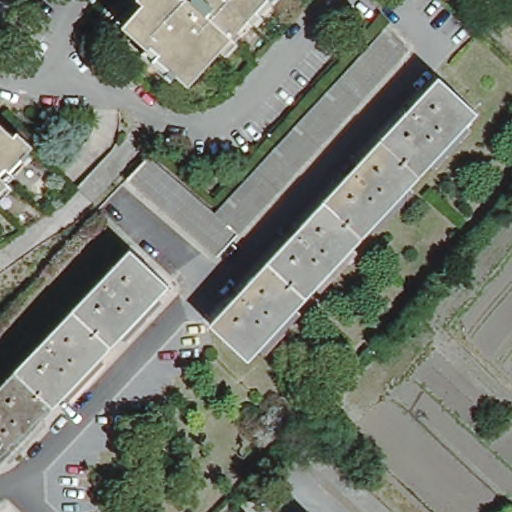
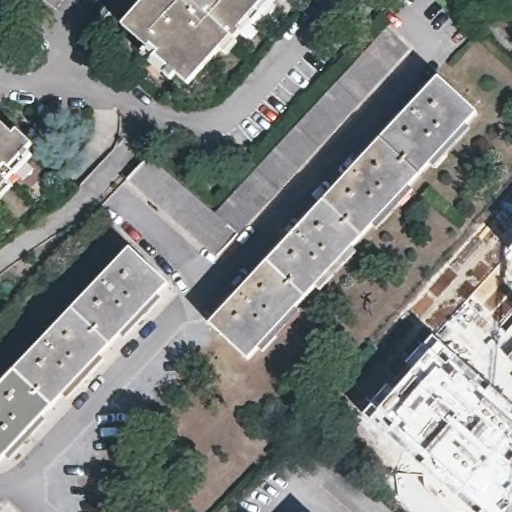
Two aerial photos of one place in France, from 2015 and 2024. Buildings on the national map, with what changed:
unchanged [(169,75),(171,73),(148,53),(153,49),(128,27),(148,5),(144,0),(282,0),(278,4),(276,3),(257,24),(255,22),(245,33),(238,40),(241,43),(231,55),(226,49),(193,85),(182,74),(176,81),(169,75)]
unchanged [(148,155),(216,212),(228,201),(387,29),(409,50),(218,255),(128,179),(148,155)]
unchanged [(255,358),(216,322),(443,76),(482,112),(255,358)]
unchanged [(19,129),(35,144),(29,150),(34,155),(11,178),(15,182),(0,198),(0,118),(15,132),(19,129)]
new [(511,250),(512,248),(512,251),(511,250)]
unchanged [(0,466),(0,391),(136,249),(174,284),(1,467),(0,466)]
new [(474,512),(365,415),(434,336),(492,388),(512,406),(512,512),(474,512)]
demolished [(315,433),(399,512),(358,512),(295,453),(315,433)]

